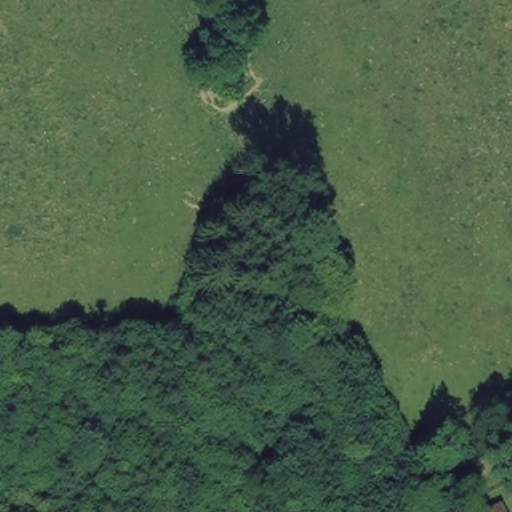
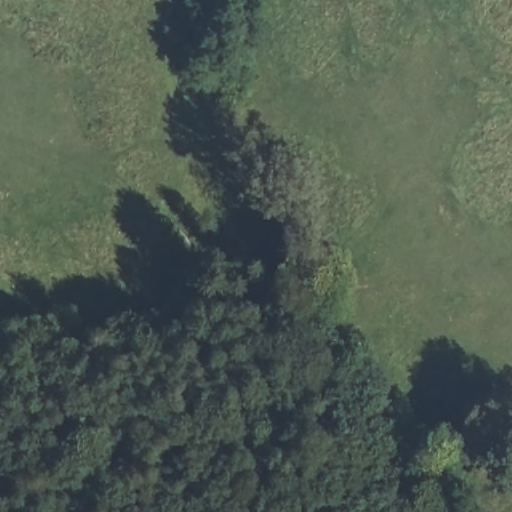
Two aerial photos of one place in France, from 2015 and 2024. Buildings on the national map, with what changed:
unchanged [(482,512),(505,502),(509,512),(482,512)]

